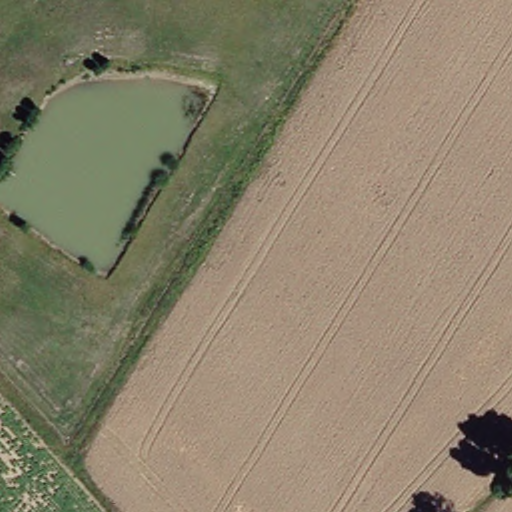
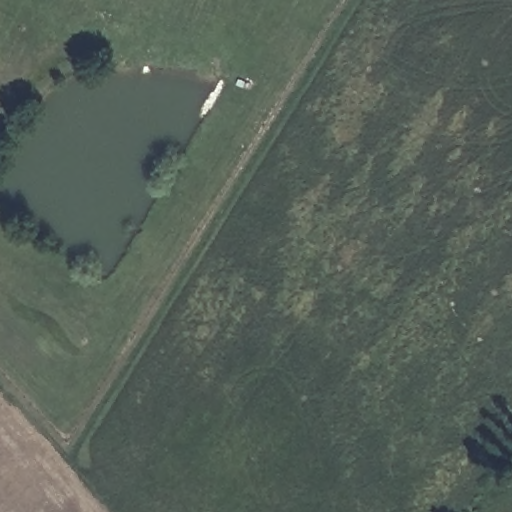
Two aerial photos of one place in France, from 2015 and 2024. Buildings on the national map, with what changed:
[]

